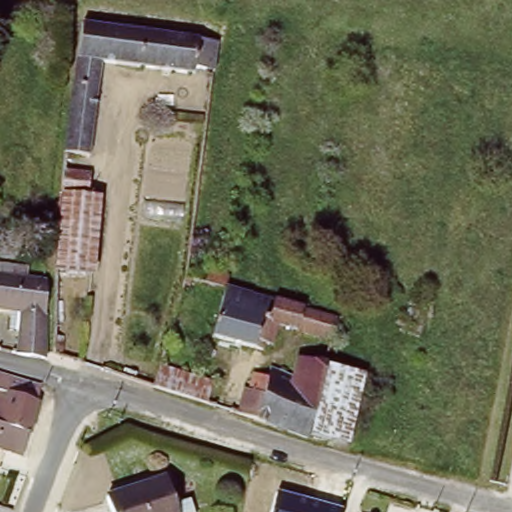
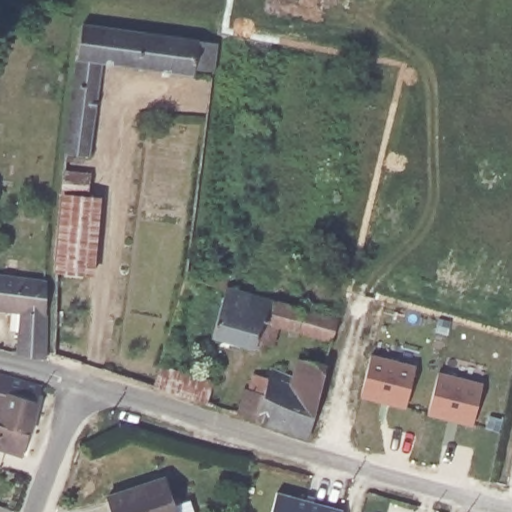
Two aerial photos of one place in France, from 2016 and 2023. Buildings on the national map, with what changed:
unchanged [(186,70),(97,58),(85,151),(68,150),(68,157),(60,157),(65,106),(78,22),(203,39),(214,40),(211,66),(200,65),(188,63),(186,70)]
unchanged [(64,172),(88,176),(86,199),(99,201),(94,276),(57,272),(63,196),(64,172)]
unchanged [(46,356),(16,350),(17,310),(0,308),(0,272),(11,273),(12,264),(28,266),(28,275),(44,277),(46,277),(46,356)]
unchanged [(326,338),(293,329),(294,327),(273,321),(267,342),(260,341),(258,347),(206,333),(219,285),(198,279),(202,268),(223,275),(220,283),(331,315),(326,338)]
unchanged [(193,280),(190,288),(183,287),(186,278),(190,279),(193,280)]
unchanged [(54,333),(63,333),(63,348),(53,348),(54,333)]
unchanged [(308,433),(307,436),(274,423),(236,410),(244,386),(249,386),(254,371),(268,375),(271,368),(290,373),(296,350),(308,352),(308,356),(316,359),(319,350),(328,352),(326,360),(308,433)]
new [(404,408),(361,396),(371,353),(416,365),(404,408)]
unchanged [(213,383),(206,405),(153,388),(161,366),(213,383)]
unchanged [(41,381),(37,400),(23,451),(0,444),(0,369),(41,381)]
new [(471,425),(428,415),(439,371),(482,383),(471,425)]
unchanged [(113,512),(108,494),(166,475),(178,512),(113,512)]
new [(339,512),(271,512),(276,494),(339,512)]

